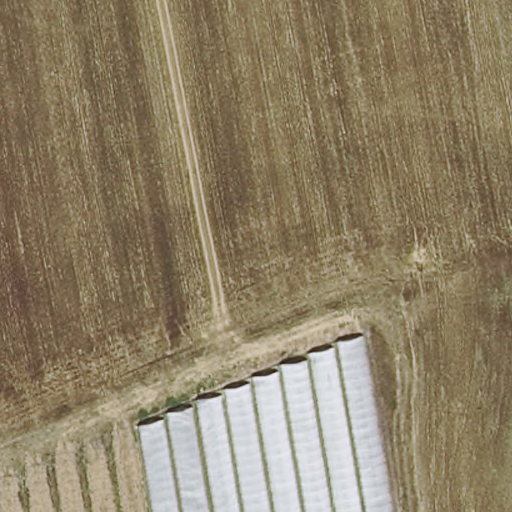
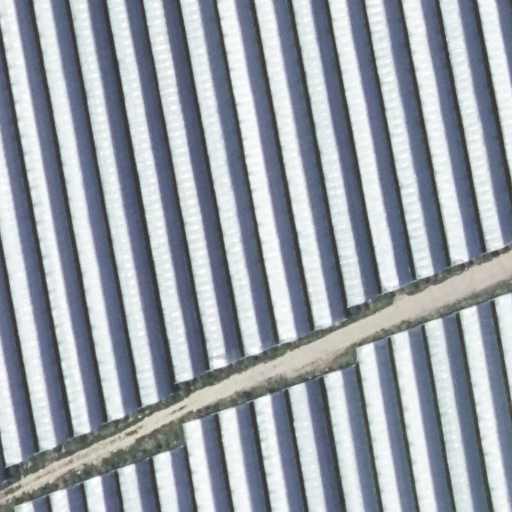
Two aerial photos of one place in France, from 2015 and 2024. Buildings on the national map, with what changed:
new [(342,308),(345,320),(168,383),(172,396),(3,466),(0,447),(0,0),(512,0),(512,242),(342,308)]
new [(13,505),(185,443),(182,424),(356,364),(354,348),(512,292),(512,512),(14,512),(13,505)]
demolished [(0,484),(362,336),(391,512),(0,512),(0,484)]
new [(5,479),(0,480),(0,447),(3,466),(5,479)]

